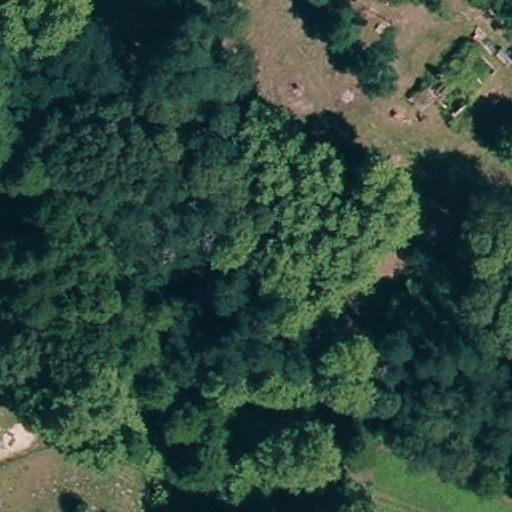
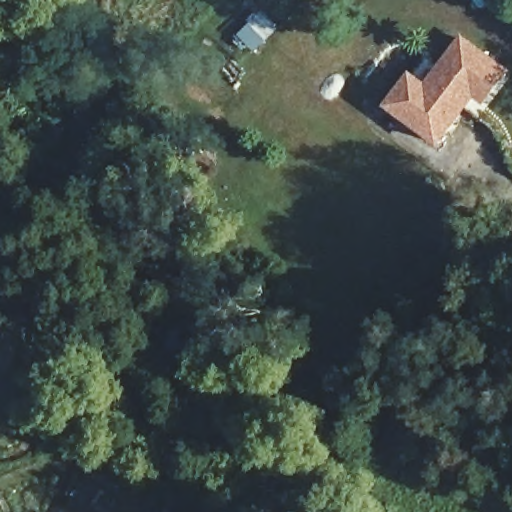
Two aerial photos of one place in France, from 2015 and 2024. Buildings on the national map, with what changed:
demolished [(428,107),(406,90),(394,101),(381,91),(383,89),(438,33),(470,64),(428,107)]
new [(476,101),(440,150),(385,110),(410,74),(426,85),(462,36),(511,71),(486,107),(476,101)]
demolished [(460,181),(425,146),(438,135),(472,170),(460,181)]

